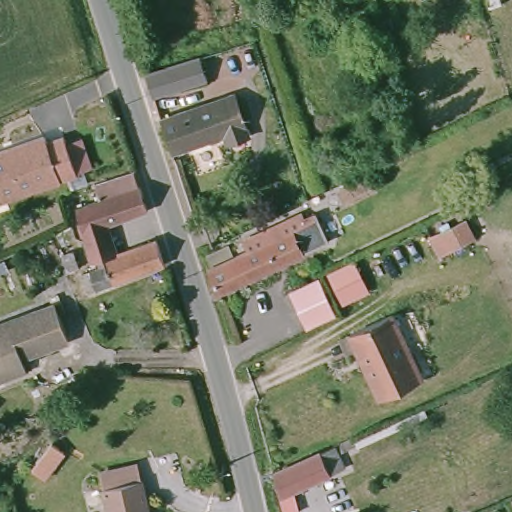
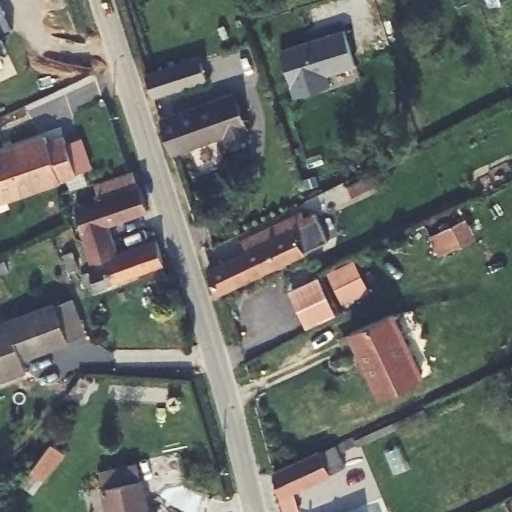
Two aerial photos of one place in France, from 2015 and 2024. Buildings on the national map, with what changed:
new [(13,30),(0,36),(7,52),(0,56),(0,0),(13,30)]
new [(312,91),(295,97),(281,50),(344,30),(355,67),(321,78),(318,69),(306,72),(312,91)]
unchanged [(210,81),(156,99),(149,74),(202,57),(210,81)]
unchanged [(222,103),(236,99),(250,140),(233,145),(232,142),(230,135),(174,154),(164,122),(222,103)]
unchanged [(25,146),(42,141),(45,148),(60,144),(62,148),(76,143),(85,173),(72,177),(0,201),(0,154),(25,145),(25,146)]
unchanged [(132,167),(146,212),(106,224),(116,255),(156,241),(164,265),(85,292),(80,275),(96,268),(94,262),(89,264),(73,206),(97,199),(92,180),(132,167)]
unchanged [(220,301),(211,275),(260,250),(255,240),(300,219),(315,251),(220,301)]
unchanged [(452,250),(443,230),(467,220),(476,240),(452,250)]
unchanged [(319,276),(336,312),(309,325),(292,289),(319,276)]
unchanged [(420,372),(375,390),(350,326),(393,307),(420,372)]
unchanged [(22,361),(26,373),(0,383),(0,331),(56,309),(68,343),(22,361)]
unchanged [(61,442),(49,472),(35,466),(47,436),(61,442)]
unchanged [(335,449),(342,465),(290,487),(297,506),(285,511),(273,475),(329,451),(335,449)]
unchanged [(105,478),(137,471),(140,486),(142,485),(148,512),(109,512),(105,493),(108,493),(105,478)]

